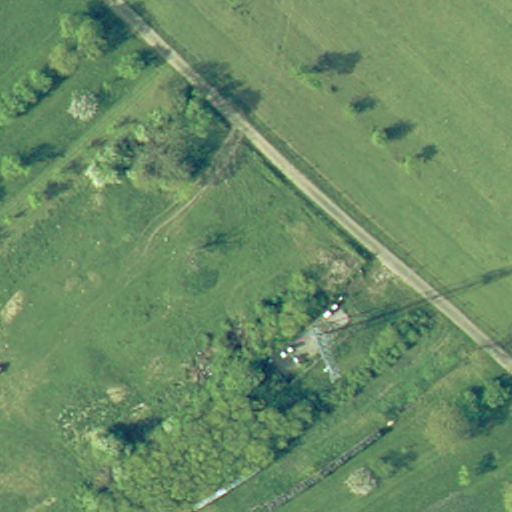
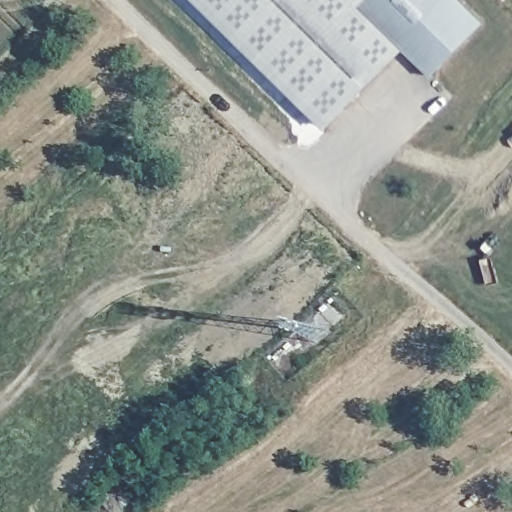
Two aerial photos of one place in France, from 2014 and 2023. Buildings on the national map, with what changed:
new [(487,19),(435,73),(405,45),(327,124),(200,0),(467,0),(487,19)]

